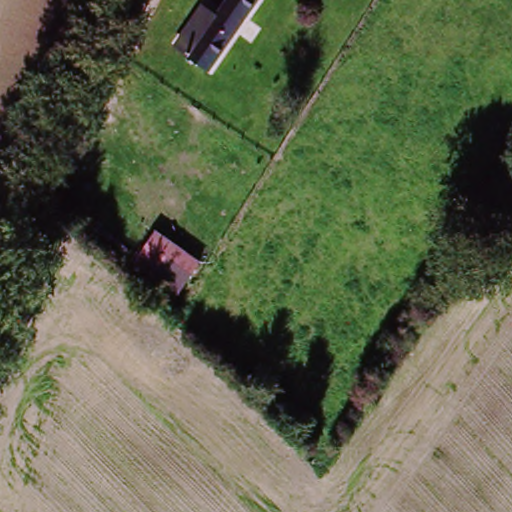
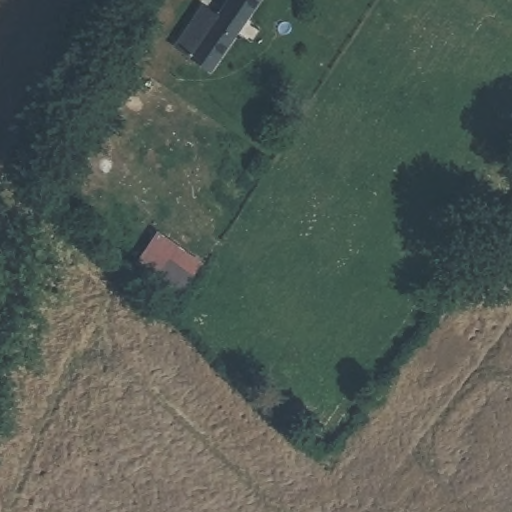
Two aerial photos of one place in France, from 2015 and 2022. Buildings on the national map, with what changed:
unchanged [(232,0),(260,0),(215,66),(179,43),(203,8),(219,19),(232,0)]
unchanged [(179,300),(151,281),(176,245),(203,266),(179,300)]

